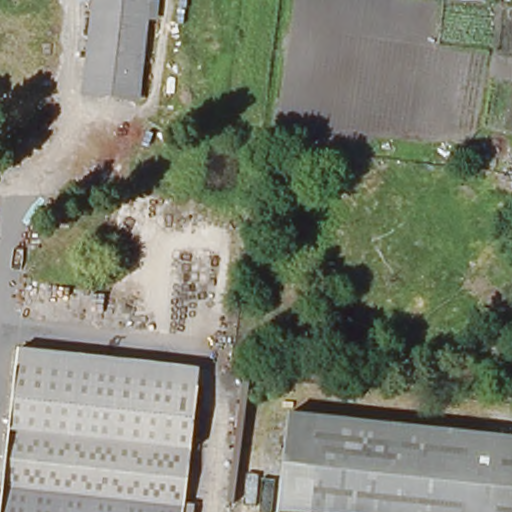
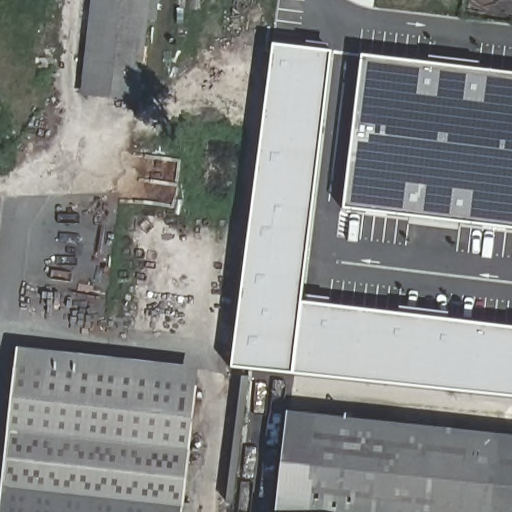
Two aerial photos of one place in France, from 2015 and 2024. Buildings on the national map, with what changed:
unchanged [(96,0),(153,0),(143,98),(128,96),(87,92),(89,70),(96,0)]
new [(231,368),(273,45),(332,53),(301,303),(512,328),(512,398),(294,375),(231,368)]
new [(361,56),(512,74),(512,230),(344,210),(361,56)]
demolished [(211,69),(229,71),(227,88),(210,86),(211,69)]
unchanged [(183,512),(0,512),(0,510),(17,348),(202,369),(183,512)]
unchanged [(288,411),(512,436),(512,512),(278,512),(288,411)]

